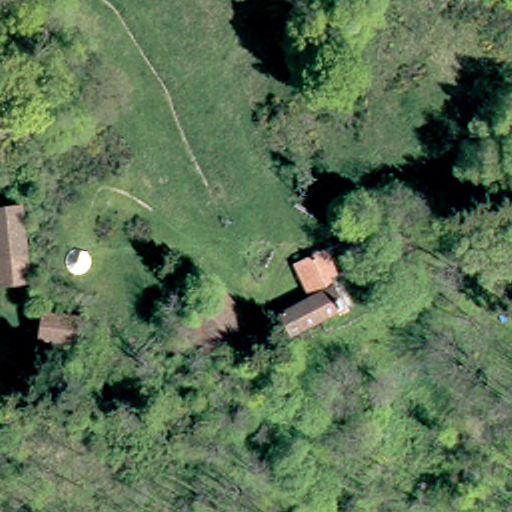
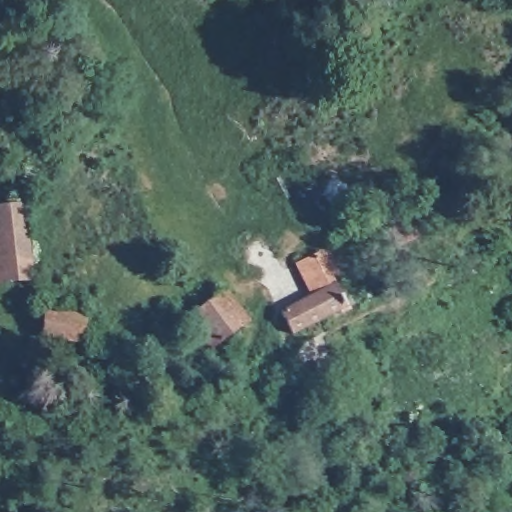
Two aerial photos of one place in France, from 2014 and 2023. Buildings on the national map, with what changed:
unchanged [(0,292),(0,220),(27,217),(33,288),(0,292)]
unchanged [(249,322),(218,344),(203,355),(179,321),(197,307),(203,302),(184,275),(205,261),(249,322)]
unchanged [(284,322),(315,306),(300,271),(324,261),(348,315),(326,325),(294,341),(284,322)]
unchanged [(89,310),(85,335),(44,326),(49,303),(89,310)]

